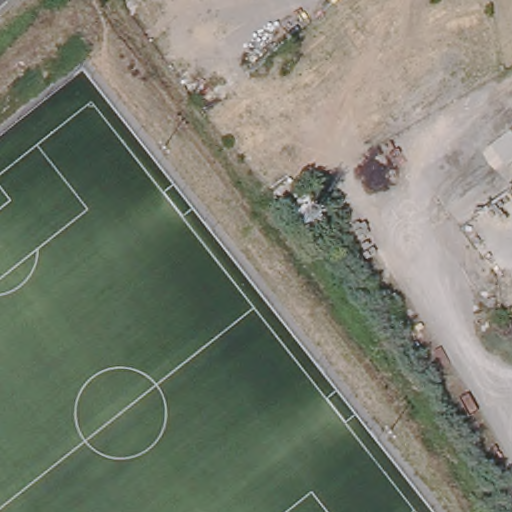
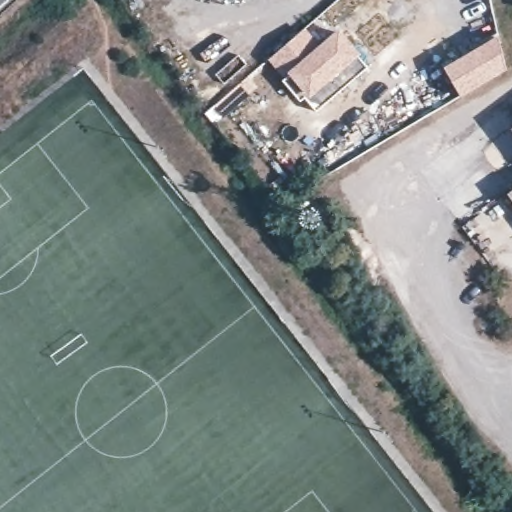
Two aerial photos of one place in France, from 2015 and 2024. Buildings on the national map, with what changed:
new [(302,31),(318,50),(339,32),(368,67),(353,80),(342,66),(322,83),(334,96),(318,110),(306,97),(302,101),(285,80),(288,77),(271,56),(302,31)]
new [(500,38),(512,67),(466,94),(451,67),(500,38)]
unchanged [(512,190),(512,200),(508,194),(512,190)]

